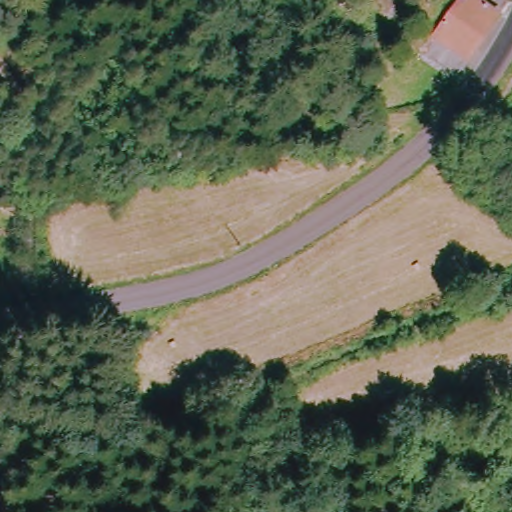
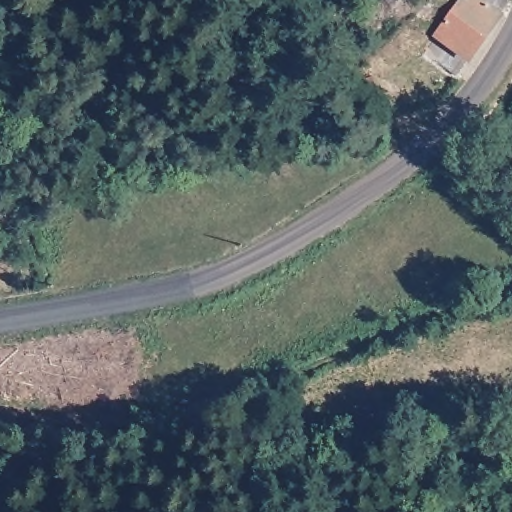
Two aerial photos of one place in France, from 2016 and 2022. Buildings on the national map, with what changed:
unchanged [(442,32),(438,27),(460,0),(512,0),(506,8),(462,66),(432,46),(442,32)]

